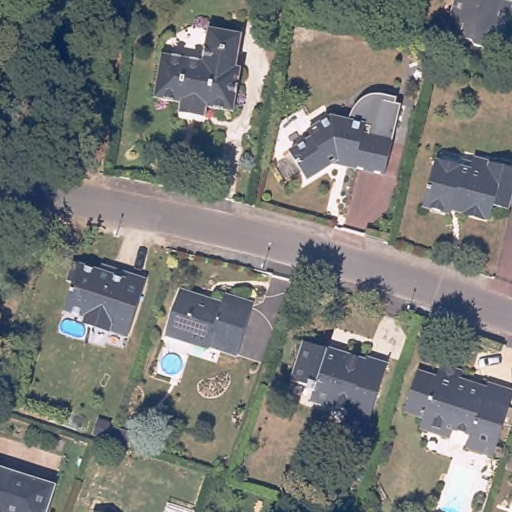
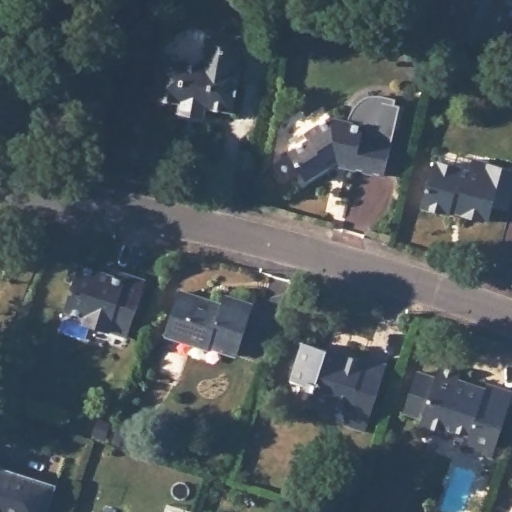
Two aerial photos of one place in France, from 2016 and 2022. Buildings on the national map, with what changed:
unchanged [(452,14),(455,15),(459,0),(512,0),(512,16),(511,16),(507,27),(508,28),(502,54),(472,45),(473,42),(456,37),(455,41),(446,37),(452,14)]
unchanged [(158,60),(201,67),(207,34),(240,40),(233,74),(239,74),(231,117),(204,112),(201,123),(174,117),(177,106),(150,102),(158,60)]
unchanged [(312,135),(307,128),(331,114),(347,117),(347,115),(348,113),(348,111),(350,107),(350,106),(352,104),(352,102),(353,101),(356,99),(357,97),(358,96),(360,95),(362,93),(364,92),(366,92),(367,91),(368,91),(371,90),(372,90),(375,90),(377,90),(379,90),(382,91),(385,92),(384,97),(400,101),(383,171),(347,162),(347,158),(337,156),(306,176),(289,150),(312,135)]
unchanged [(422,207),(435,161),(468,171),(472,158),(512,169),(512,189),(507,210),(492,206),(488,221),(457,213),(458,207),(451,205),(448,214),(422,207)]
unchanged [(145,280),(126,337),(84,323),(85,318),(64,311),(72,283),(66,281),(71,263),(109,276),(111,268),(145,280)]
unchanged [(192,344),(165,335),(180,290),(199,297),(212,301),(223,304),(226,296),(254,305),(237,357),(207,347),(207,349),(192,344)]
unchanged [(291,382),(305,343),(331,352),(329,356),(345,361),(346,358),(366,365),(367,362),(390,368),(366,435),(345,427),(348,413),(333,408),(332,412),(308,403),(313,390),(291,382)]
unchanged [(403,415),(417,372),(436,378),(441,367),(463,373),(460,383),(467,385),(466,390),(485,396),(487,388),(512,396),(512,400),(493,455),(482,451),(480,457),(465,451),(469,438),(452,432),(450,437),(443,441),(426,435),(422,427),(423,421),(403,415)]
unchanged [(46,512),(0,512),(0,468),(55,487),(46,512)]

